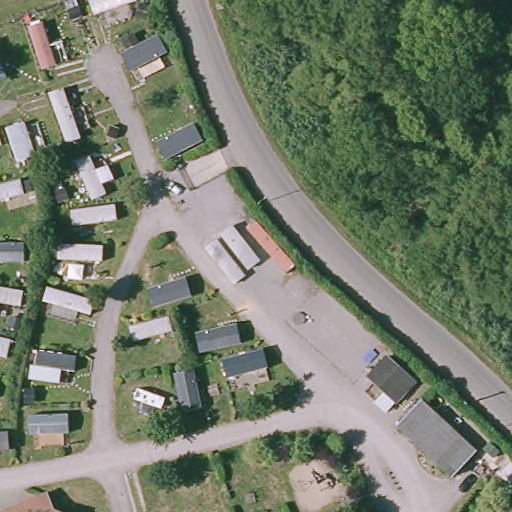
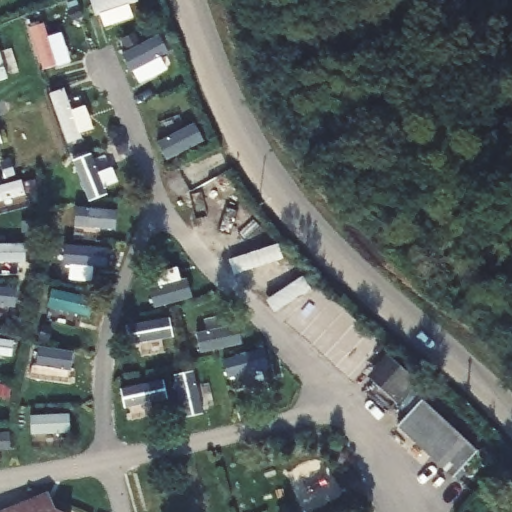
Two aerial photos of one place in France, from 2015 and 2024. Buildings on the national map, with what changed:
unchanged [(395,403),(386,396),(390,392),(371,375),(388,357),(415,382),(395,403)]
unchanged [(475,452),(452,478),(396,427),(420,401),(475,452)]
unchanged [(32,500),(60,512),(27,512),(32,500)]
unchanged [(9,509),(15,512),(1,512),(9,509)]

